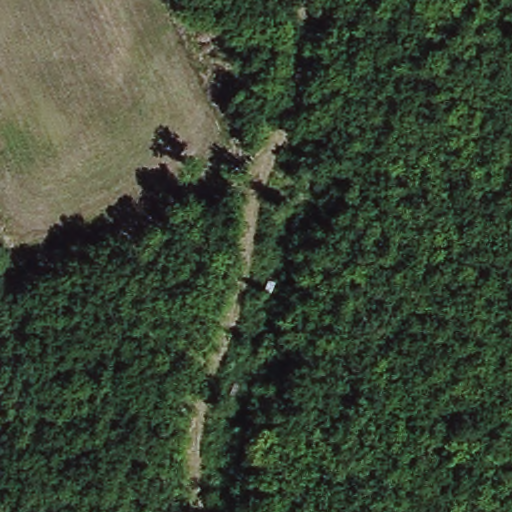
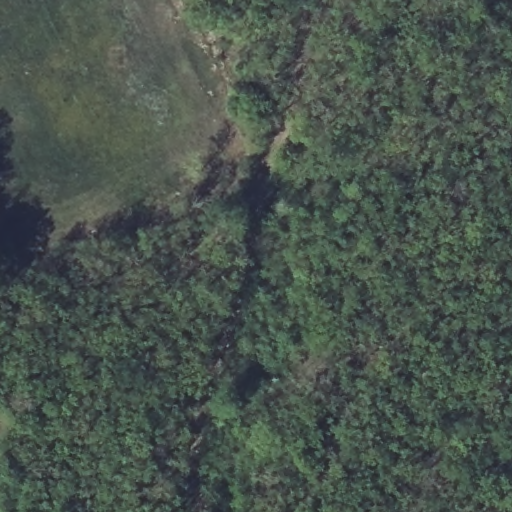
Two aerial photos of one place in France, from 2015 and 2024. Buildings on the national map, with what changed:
[]

